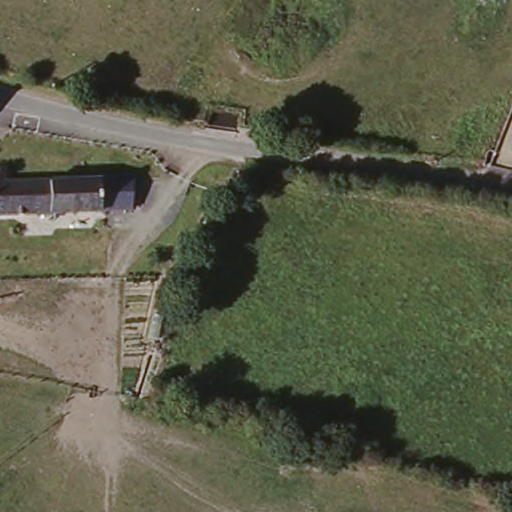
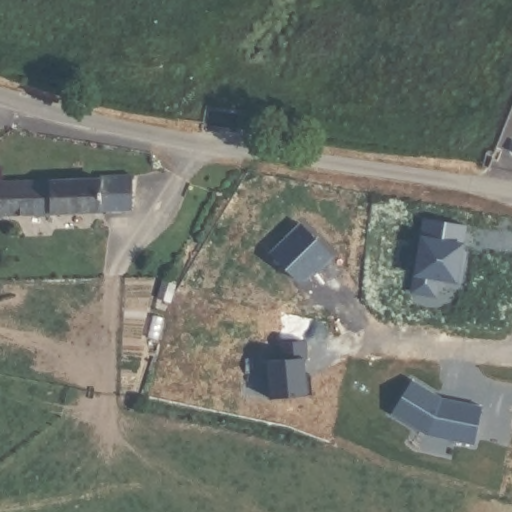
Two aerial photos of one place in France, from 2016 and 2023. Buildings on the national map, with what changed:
unchanged [(47,219),(0,221),(0,188),(22,187),(86,184),(133,181),(134,214),(47,219)]
new [(422,240),(424,222),(466,229),(462,253),(466,254),(461,285),(439,282),(436,299),(413,295),(422,240)]
new [(301,225),(332,256),(320,268),(318,266),(304,281),(297,281),(271,255),(301,225)]
new [(280,360),(278,343),(305,341),(307,358),(303,358),(305,374),(310,374),(312,394),(271,399),(266,361),(280,360)]
new [(413,382),(440,400),(479,406),(472,445),(427,438),(394,417),(413,382)]

